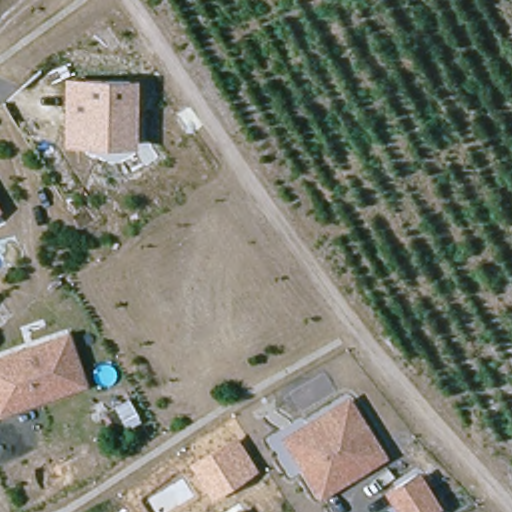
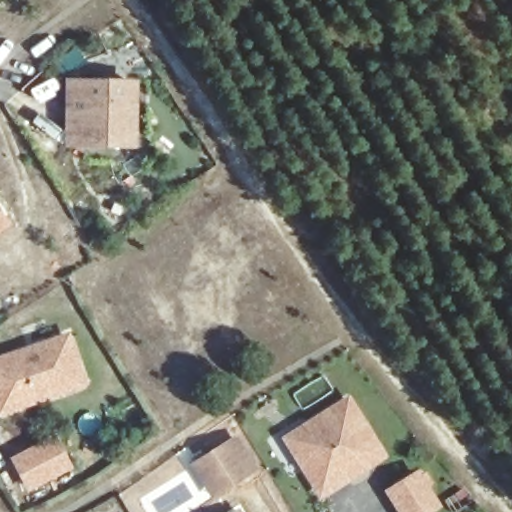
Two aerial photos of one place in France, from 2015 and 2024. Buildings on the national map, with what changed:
unchanged [(124,147),(91,146),(70,146),(70,114),(70,83),(131,83),(131,121),(131,147),(124,147)]
unchanged [(0,409),(0,356),(52,337),(66,332),(83,380),(69,385),(0,409)]
unchanged [(323,496),(296,455),(288,442),(309,428),(348,403),(383,457),(363,470),(351,478),(323,496)]
new [(73,467),(29,491),(10,457),(56,432),(73,467)]
unchanged [(256,468),(211,499),(189,465),(236,436),(256,468)]
unchanged [(439,507),(431,512),(403,512),(391,493),(419,476),(439,507)]
unchanged [(240,510),(242,512),(236,512),(240,510)]

